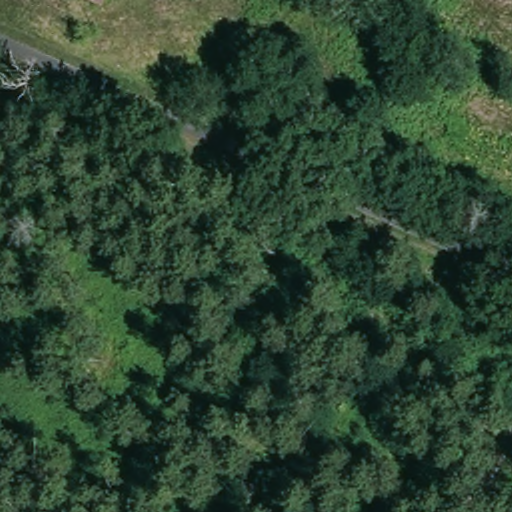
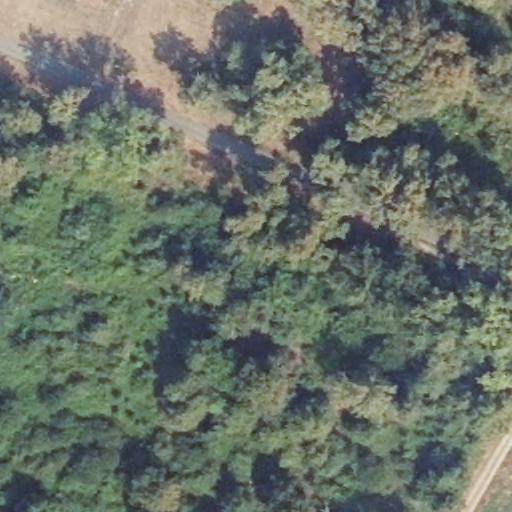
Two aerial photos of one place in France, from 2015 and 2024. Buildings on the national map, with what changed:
unchanged [(93,0),(108,0),(106,5),(93,0)]

